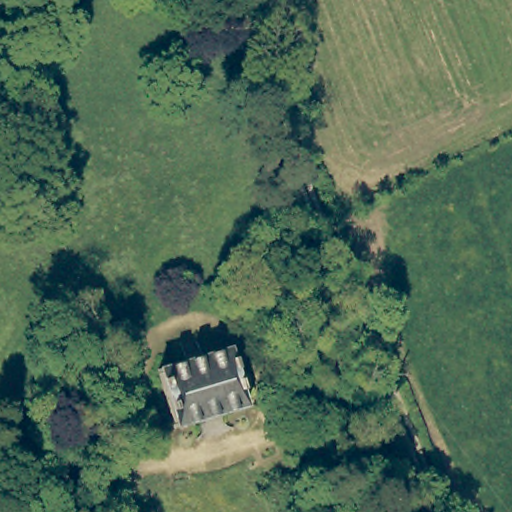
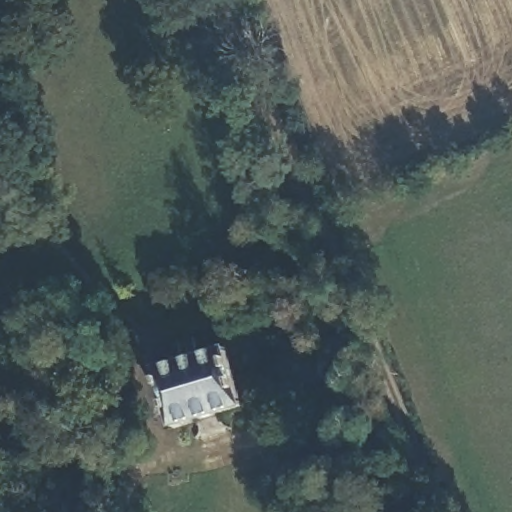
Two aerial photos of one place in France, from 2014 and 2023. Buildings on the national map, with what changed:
unchanged [(205,351),(233,343),(248,405),(223,411),(232,427),(199,435),(202,416),(174,423),(159,362),(186,356),(182,338),(199,333),(205,351)]

